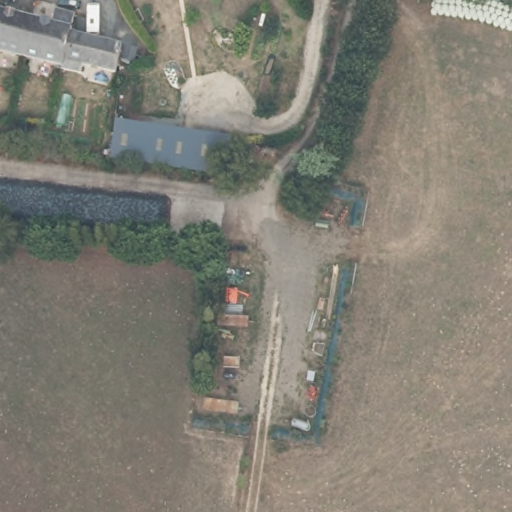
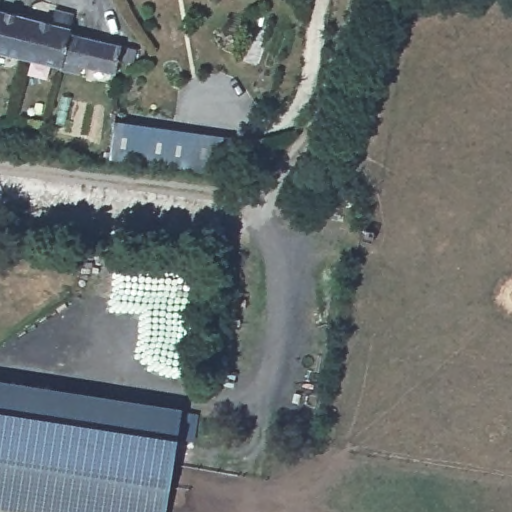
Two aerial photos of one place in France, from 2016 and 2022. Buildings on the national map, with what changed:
unchanged [(63,59),(61,64),(0,49),(0,9),(53,22),(56,7),(75,12),(70,32),(120,45),(114,72),(63,59)]
unchanged [(224,132),(219,169),(110,153),(118,89),(138,92),(133,126),(160,130),(162,124),(224,132)]
new [(165,512),(24,512),(0,508),(0,378),(184,407),(165,512)]

